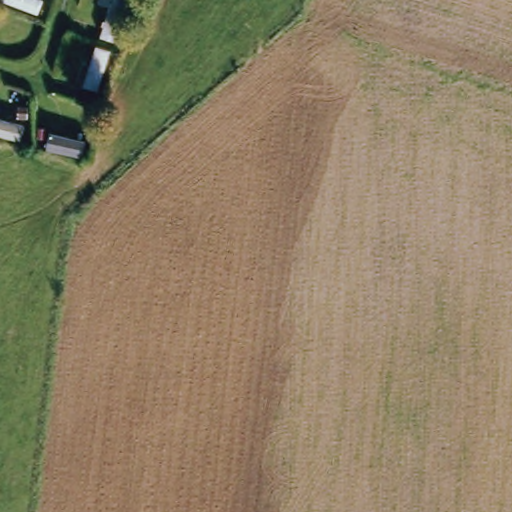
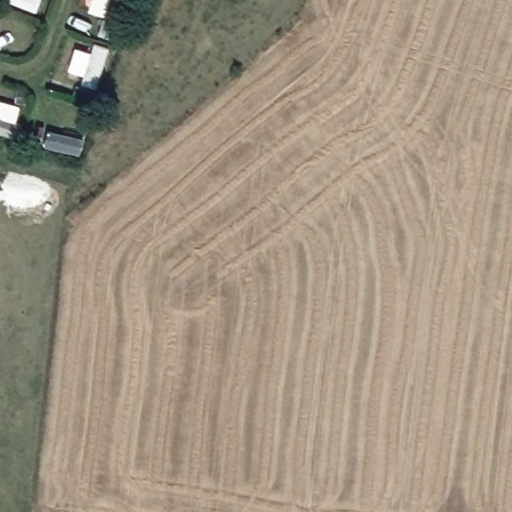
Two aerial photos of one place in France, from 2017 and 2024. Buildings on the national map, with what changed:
unchanged [(11,109),(9,122),(26,127),(23,142),(0,136),(0,105),(11,109)]

